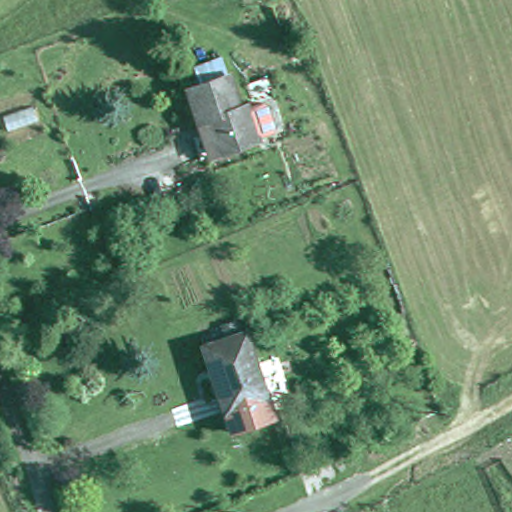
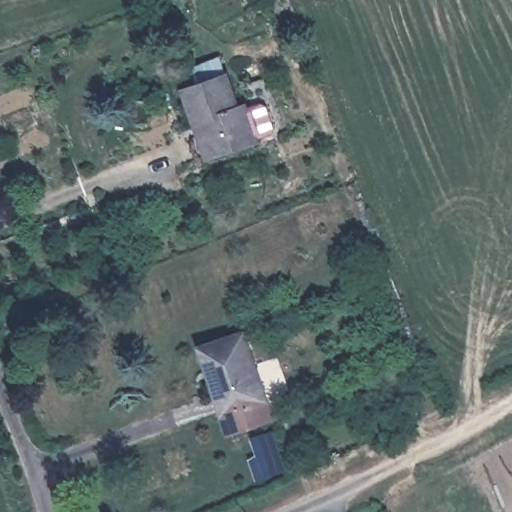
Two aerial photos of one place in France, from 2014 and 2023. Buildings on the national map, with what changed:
unchanged [(238,105),(250,100),(266,136),(220,156),(208,129),(200,132),(183,91),(224,74),(238,105)]
unchanged [(266,398),(228,410),(219,379),(213,381),(201,344),(245,330),(266,398)]

